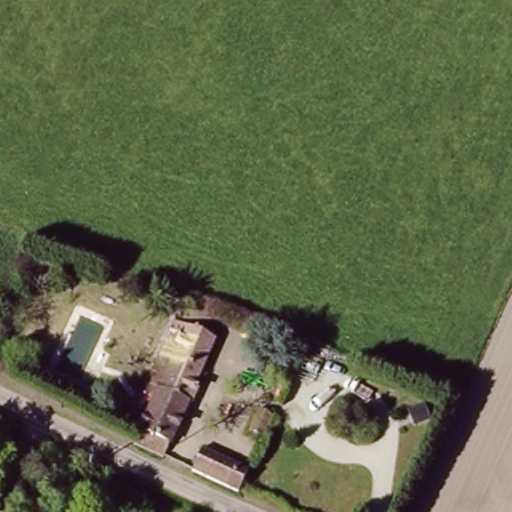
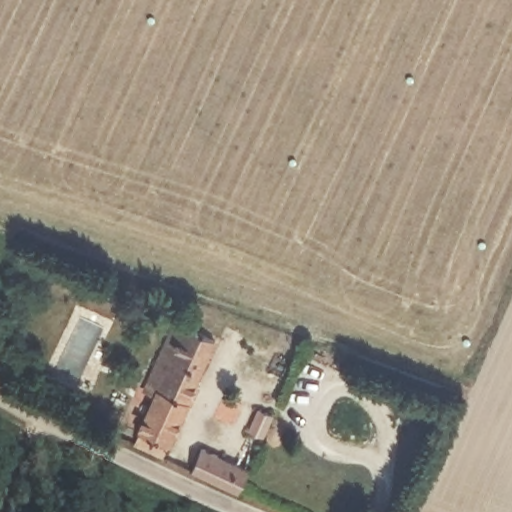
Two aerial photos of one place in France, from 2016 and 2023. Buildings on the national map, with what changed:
unchanged [(216,339),(190,401),(169,446),(163,456),(133,441),(138,428),(153,392),(141,387),(169,322),(216,339)]
unchanged [(251,468),(236,503),(177,475),(191,444),(251,468)]

